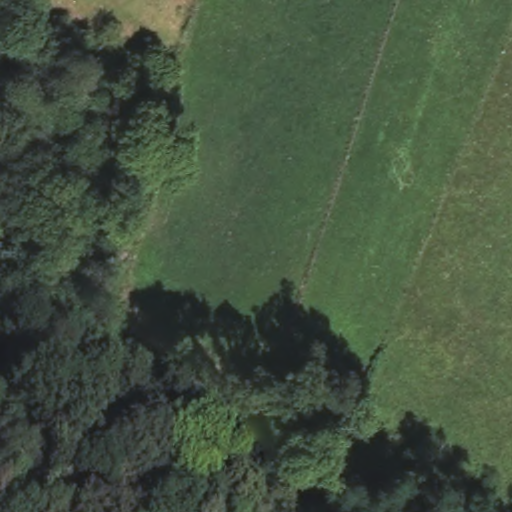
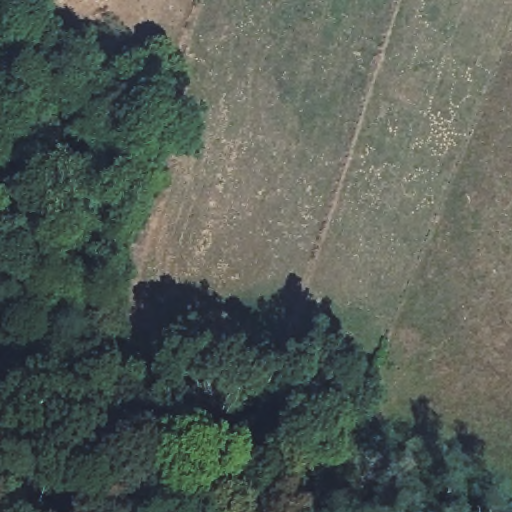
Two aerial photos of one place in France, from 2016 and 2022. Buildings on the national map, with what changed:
[]

